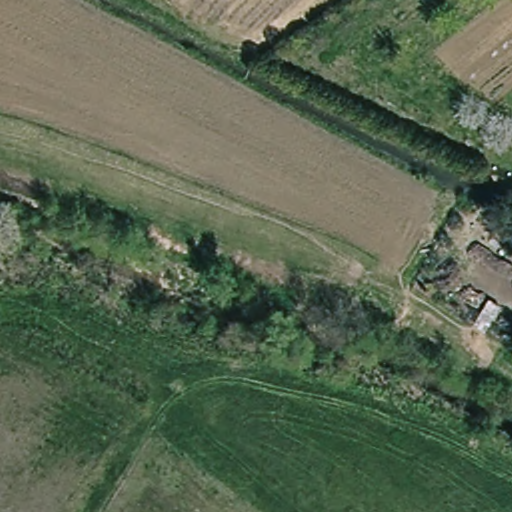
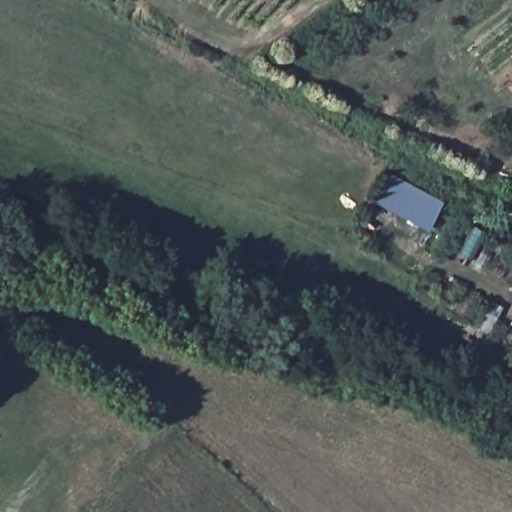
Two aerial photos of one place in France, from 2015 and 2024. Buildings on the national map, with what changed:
new [(425,230),(373,201),(388,173),(442,201),(425,230)]

